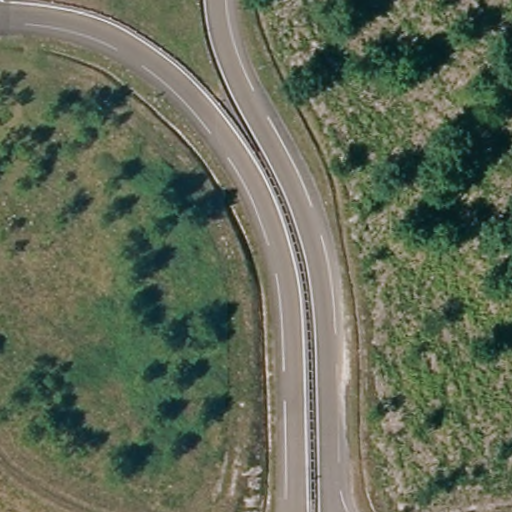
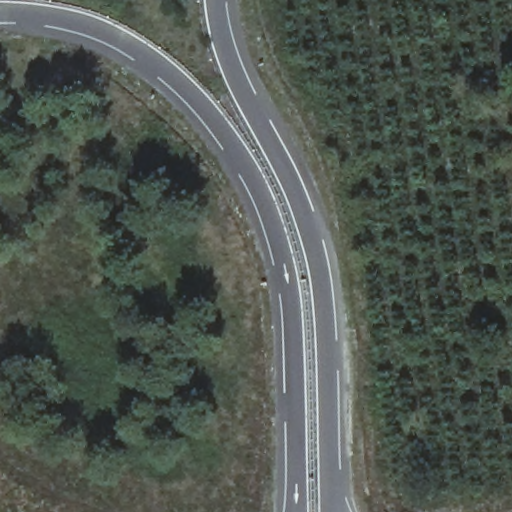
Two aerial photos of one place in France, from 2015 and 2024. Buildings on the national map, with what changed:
[]

